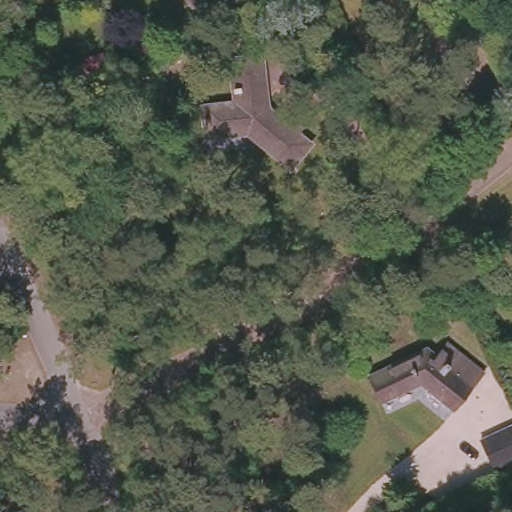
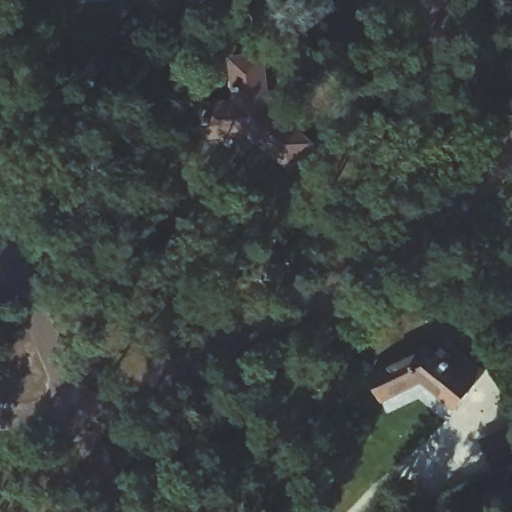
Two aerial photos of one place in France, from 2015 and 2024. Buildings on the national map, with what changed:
unchanged [(232,100),(227,59),(261,52),(267,101),(280,115),(286,109),(303,122),(297,129),(305,135),(287,157),(265,139),(247,122),(209,130),(207,120),(201,121),(200,110),(205,109),(204,105),(232,100)]
unchanged [(425,344),(437,348),(445,337),(485,365),(457,401),(419,375),(377,395),(367,372),(425,344)]

